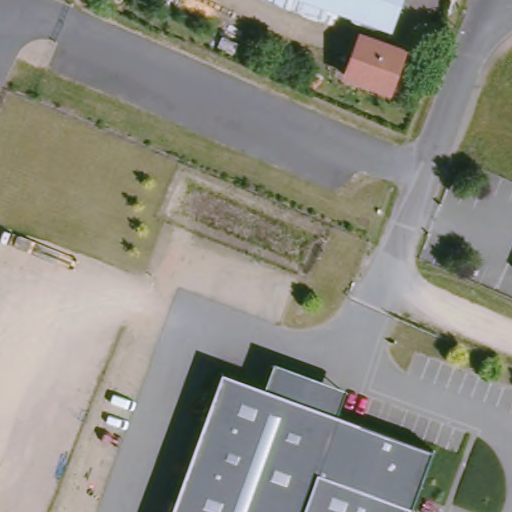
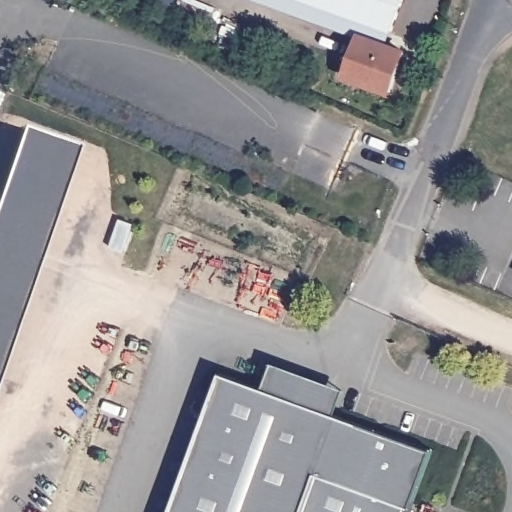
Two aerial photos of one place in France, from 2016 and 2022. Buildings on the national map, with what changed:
unchanged [(391,29),(312,0),(402,0),(391,29)]
unchanged [(405,52),(392,91),(345,74),(359,35),(405,52)]
new [(82,147),(0,385),(0,204),(27,126),(82,147)]
unchanged [(265,393),(277,367),(348,393),(340,420),(435,454),(413,511),(413,512),(175,512),(225,376),(265,393)]

